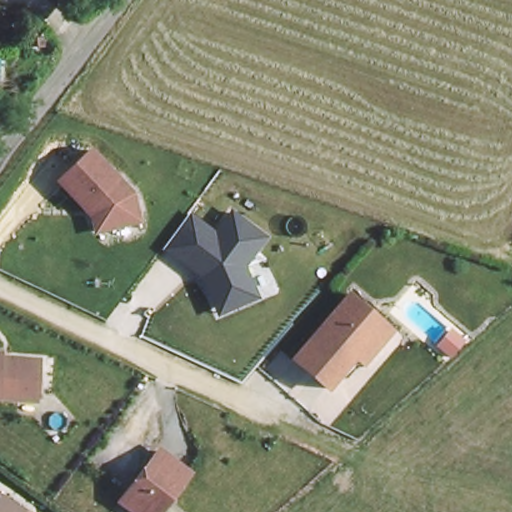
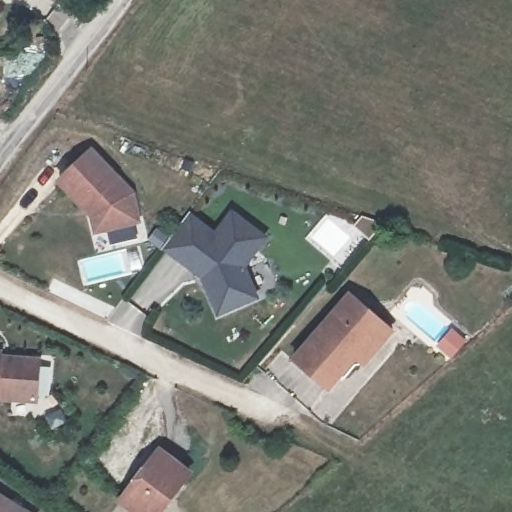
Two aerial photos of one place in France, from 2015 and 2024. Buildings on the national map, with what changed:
unchanged [(98,214),(91,206),(63,180),(95,147),(137,191),(145,218),(108,227),(102,229),(98,214)]
unchanged [(270,237),(247,267),(260,300),(220,316),(203,281),(166,251),(192,215),(217,232),(233,210),(270,237)]
unchanged [(349,291),(391,325),(362,360),(355,354),(330,385),(295,356),(349,291)]
unchanged [(0,352),(6,353),(5,357),(45,361),(40,402),(0,398),(0,352)]
unchanged [(190,476),(163,512),(136,512),(122,502),(160,453),(190,476)]
unchanged [(0,512),(0,497),(21,512),(0,512)]

